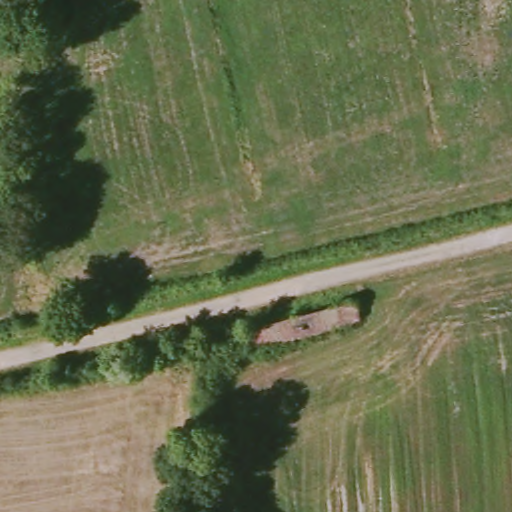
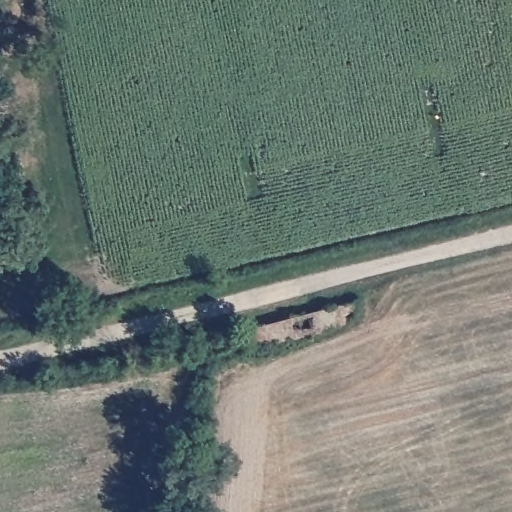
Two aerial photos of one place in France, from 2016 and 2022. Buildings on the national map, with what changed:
unchanged [(259,329),(329,312),(366,302),(369,318),(265,346),(259,329)]

